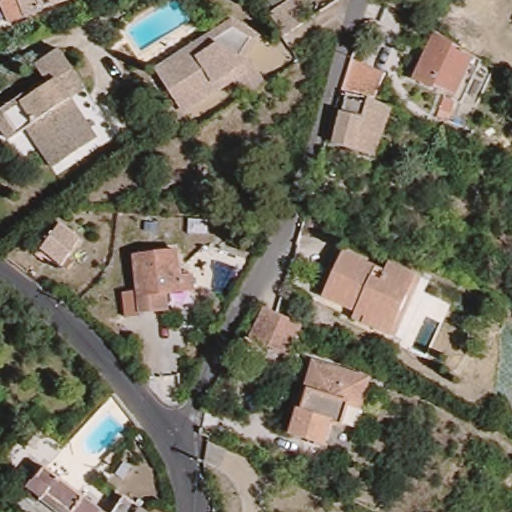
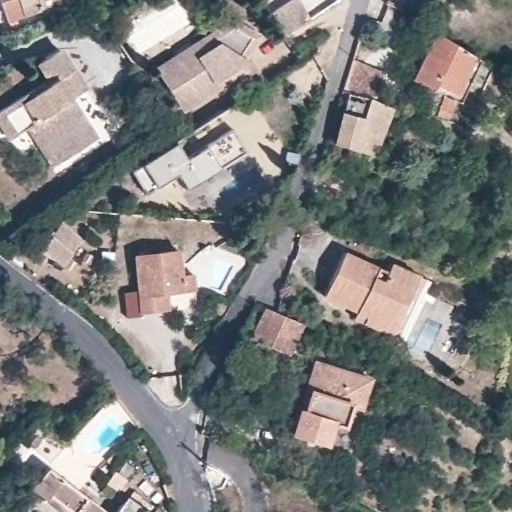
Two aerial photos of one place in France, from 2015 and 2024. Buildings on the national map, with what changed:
unchanged [(0,5),(0,0),(61,0),(64,6),(29,20),(9,27),(0,5)]
unchanged [(267,16),(292,0),(302,0),(318,23),(281,41),(267,16)]
unchanged [(433,5),(422,0),(436,0),(433,5)]
unchanged [(233,20),(261,37),(239,54),(248,59),(266,86),(242,101),(231,84),(181,115),(150,69),(233,20)]
unchanged [(464,99),(457,97),(413,80),(436,34),(475,57),(483,61),(464,99)]
unchanged [(13,141),(0,121),(0,115),(36,90),(40,95),(54,86),(41,66),(64,52),(104,110),(90,120),(103,140),(67,164),(57,170),(30,130),(13,141)]
unchanged [(389,77),(381,105),(352,96),(344,94),(353,67),(389,77)]
unchanged [(381,141),(376,155),(339,143),(352,96),(381,105),(392,109),(405,115),(394,145),(381,141)]
new [(133,171),(144,165),(176,145),(188,160),(206,146),(232,130),(248,153),(224,168),(189,191),(178,175),(159,187),(148,195),(133,171)]
unchanged [(68,265),(46,251),(63,225),(84,237),(68,265)]
unchanged [(358,305),(326,290),(346,247),(387,266),(392,257),(422,271),(430,276),(402,335),(394,331),(364,317),(355,313),(358,305)]
unchanged [(164,313),(146,313),(142,259),(184,256),(186,278),(198,278),(198,294),(171,295),(172,312),(164,313)]
unchanged [(270,345),(252,337),(266,307),(274,310),(303,323),(291,349),(288,353),(270,345)]
unchanged [(378,380),(368,412),(357,409),(351,430),(339,427),(333,448),(296,437),(319,361),(378,380)]
unchanged [(295,406),(286,403),(288,397),(296,400),(295,406)]
unchanged [(39,498),(27,489),(34,480),(35,480),(36,480),(38,480),(49,465),(108,512),(36,512),(31,509),(39,498)]
unchanged [(153,512),(118,512),(128,497),(153,512)]

